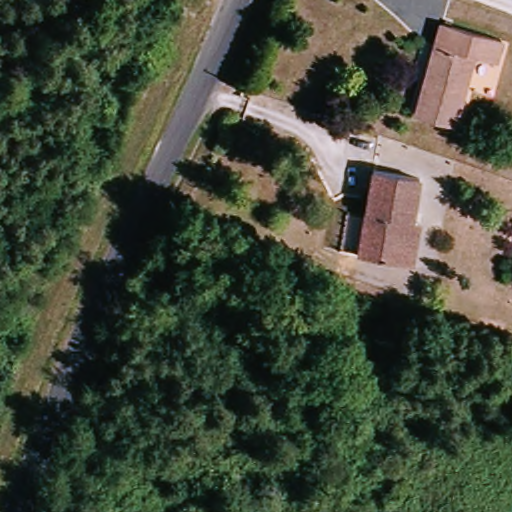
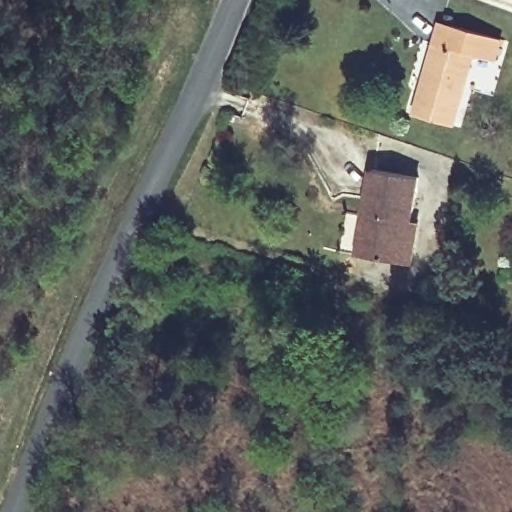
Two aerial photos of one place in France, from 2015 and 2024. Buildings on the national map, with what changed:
unchanged [(439,25),(504,41),(498,64),(476,60),(455,129),(411,118),(439,25)]
unchanged [(413,265),(401,263),(360,255),(374,172),(420,179),(413,220),(420,222),(413,265)]

